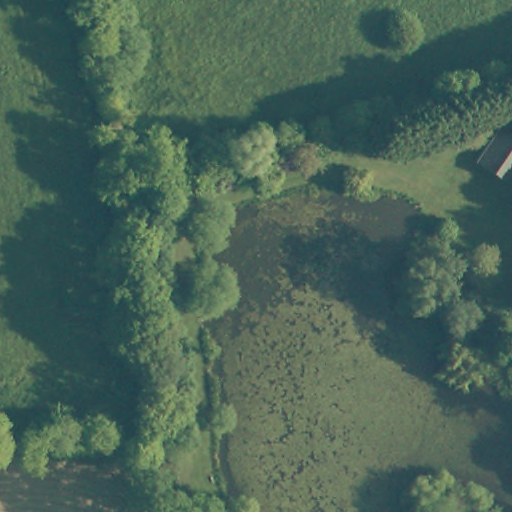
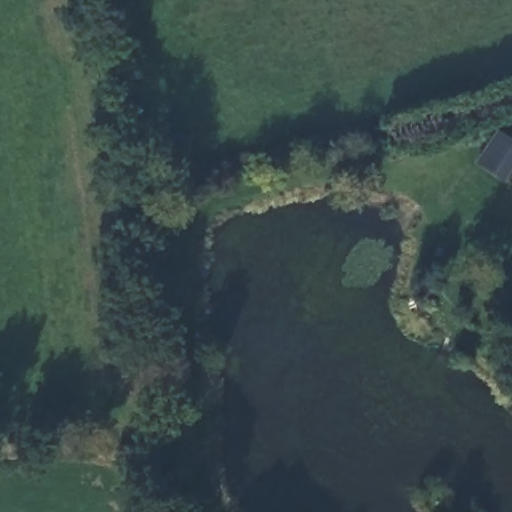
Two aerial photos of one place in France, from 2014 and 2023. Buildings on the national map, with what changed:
unchanged [(512,142),(512,168),(503,182),(470,158),(491,126),(512,142)]

